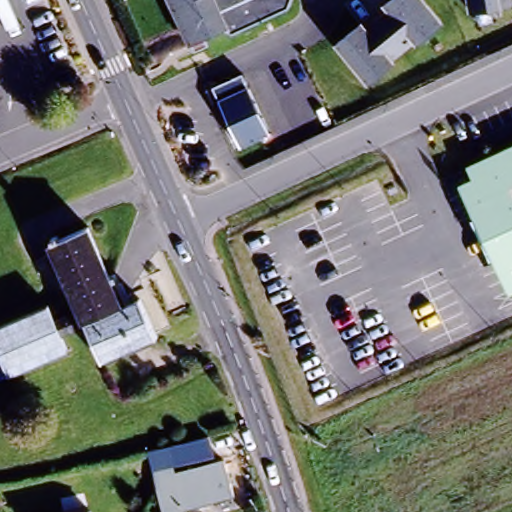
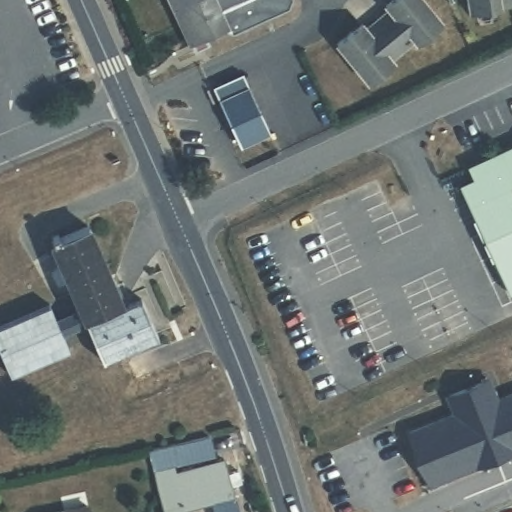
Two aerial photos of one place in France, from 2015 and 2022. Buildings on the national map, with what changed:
unchanged [(182,46),(162,0),(214,0),(226,28),(182,46)]
unchanged [(230,37),(226,28),(214,0),(293,0),(289,12),(230,37)]
unchanged [(335,45),(362,22),(366,27),(386,11),(381,6),(389,0),(424,0),(444,25),(417,46),(414,42),(393,60),(395,63),(367,86),(335,45)]
unchanged [(466,0),(512,0),(512,8),(468,14),(466,0)]
unchanged [(270,136),(240,149),(219,101),(213,89),(242,75),(247,87),(270,136)]
unchanged [(458,185),(472,179),(467,167),(512,147),(512,293),(510,294),(458,185)]
unchanged [(84,230),(121,307),(136,301),(154,335),(101,362),(83,326),(58,337),(66,355),(6,384),(0,370),(0,330),(44,308),(51,323),(77,310),(47,247),(84,230)]
new [(406,432),(451,415),(449,407),(445,397),(485,381),(492,402),(512,394),(512,452),(511,452),(473,467),(427,485),(406,432)]
unchanged [(235,497),(183,510),(184,512),(159,512),(155,496),(145,451),(211,434),(216,452),(170,463),(175,478),(226,463),(235,497)]
unchanged [(85,511),(86,512),(81,512),(85,511)]

